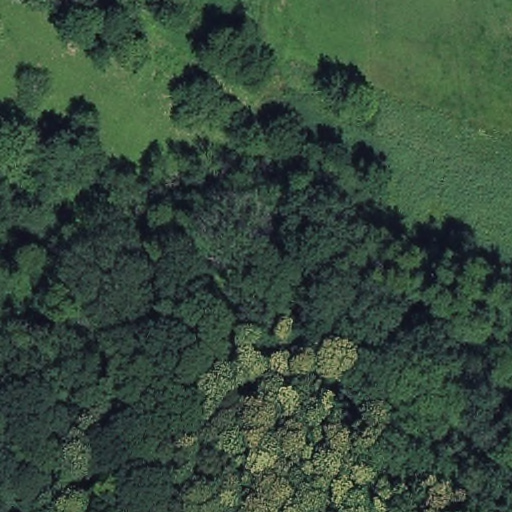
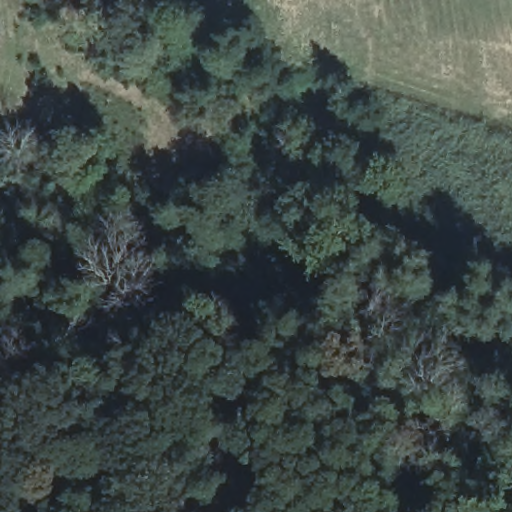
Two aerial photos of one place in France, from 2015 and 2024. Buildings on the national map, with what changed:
unchanged [(478,381),(481,376),(487,378),(484,384),(478,381)]

